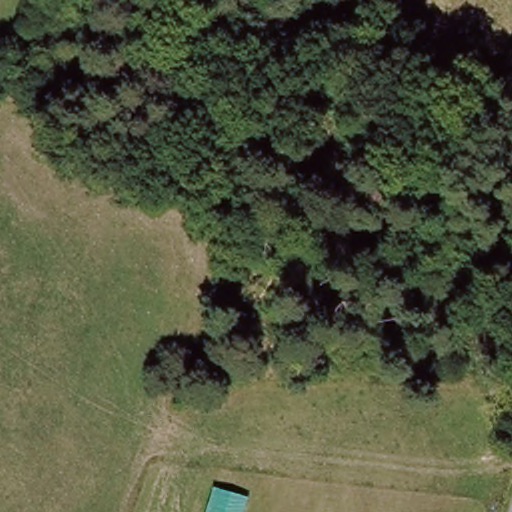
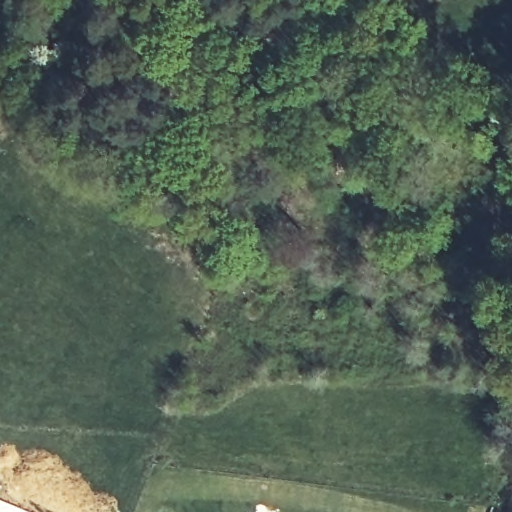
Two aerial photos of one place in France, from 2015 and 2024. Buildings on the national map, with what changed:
new [(0,499),(32,512),(0,512),(0,499)]

